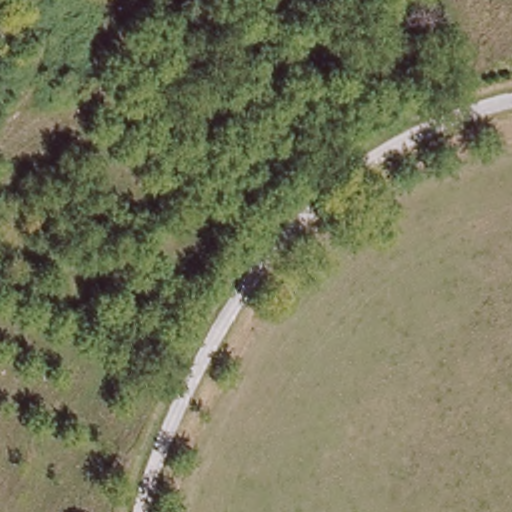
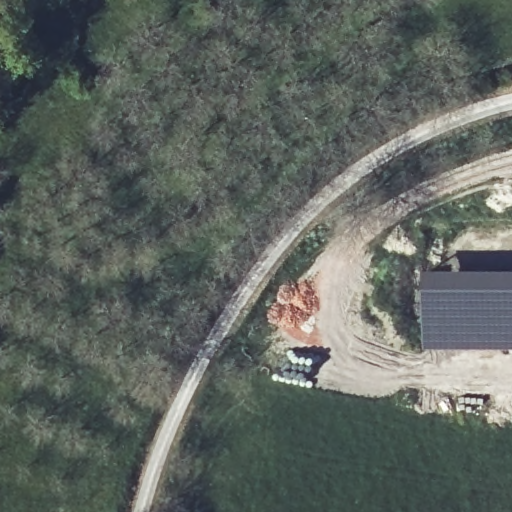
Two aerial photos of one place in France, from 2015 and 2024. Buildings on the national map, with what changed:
new [(425,272),(512,272),(512,349),(425,348),(425,272)]

